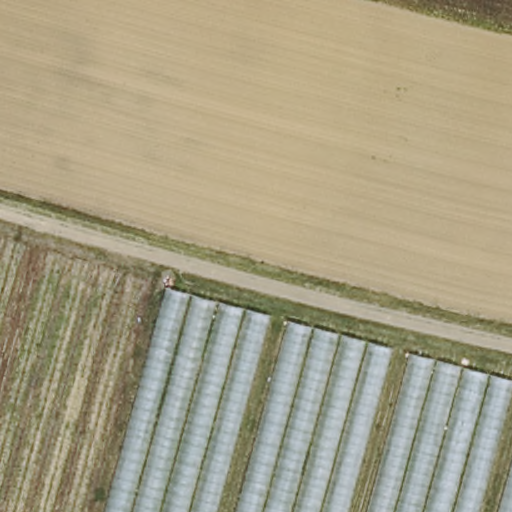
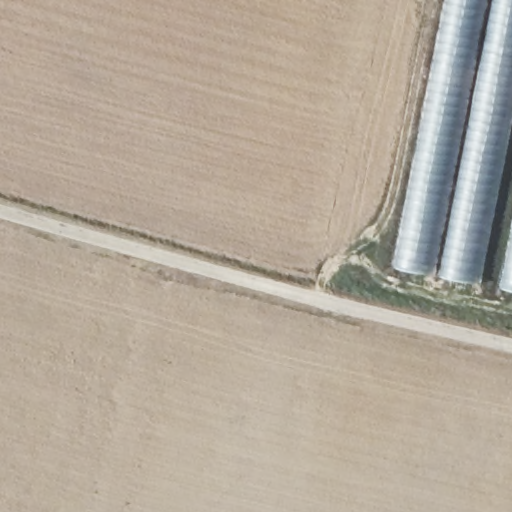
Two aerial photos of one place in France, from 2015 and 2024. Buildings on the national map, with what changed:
new [(482,284),(395,266),(445,0),(512,0),(512,131),(482,284)]
new [(502,287),(512,231),(512,289),(502,287)]
new [(0,240),(29,249),(0,353),(0,240)]
new [(151,285),(87,512),(0,512),(0,420),(46,252),(151,285)]
demolished [(222,512),(110,512),(170,288),(275,317),(222,512)]
demolished [(394,352),(351,512),(241,512),(292,323),(394,352)]
demolished [(512,383),(512,412),(484,512),(374,512),(416,360),(512,383)]
demolished [(507,512),(512,493),(512,512),(507,512)]

